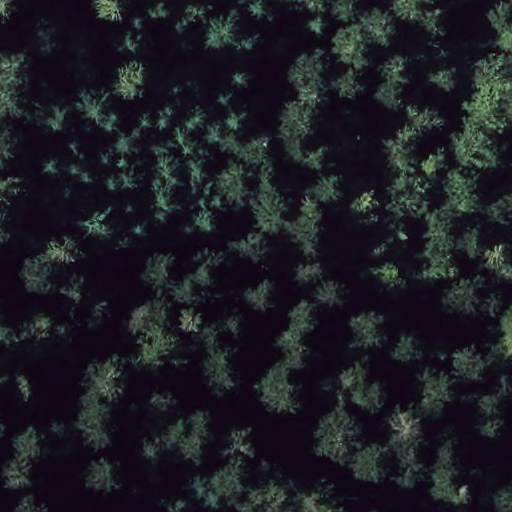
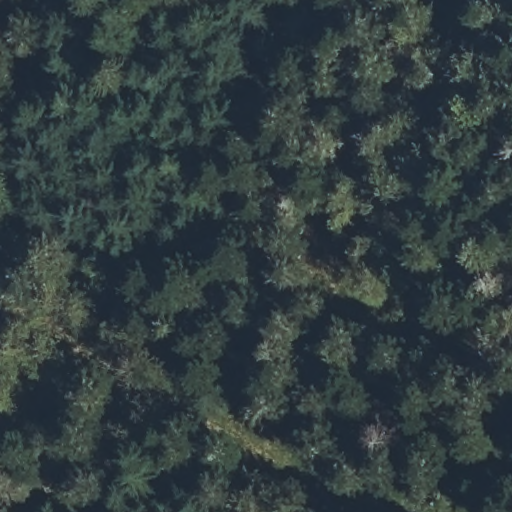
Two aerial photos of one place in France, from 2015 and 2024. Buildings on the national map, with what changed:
[]

